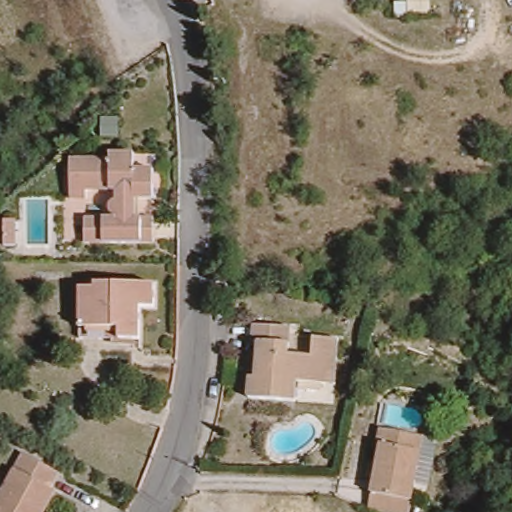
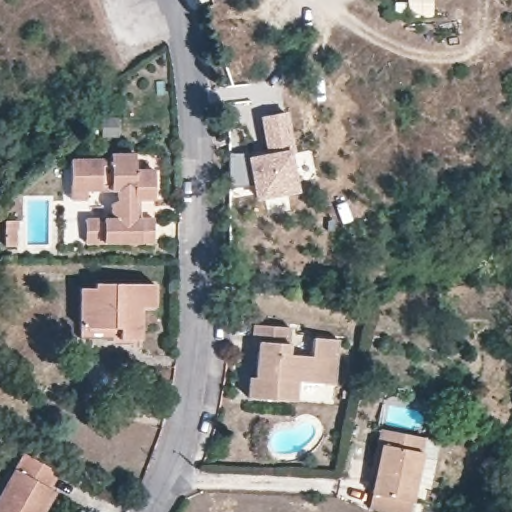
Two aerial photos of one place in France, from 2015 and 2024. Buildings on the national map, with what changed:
new [(268,153),(260,118),(284,113),(291,151),(299,190),(256,200),(252,182),(231,188),(229,154),(268,153)]
unchanged [(156,224),(156,246),(88,245),(88,224),(123,224),(123,221),(120,220),(117,218),(116,215),(116,212),(117,210),(118,208),(120,207),(123,206),(123,196),(94,195),(94,205),(74,204),(75,164),(115,165),(115,156),(137,158),(136,173),(156,173),(156,202),(144,202),(144,224),(156,224)]
unchanged [(18,246),(5,246),(4,220),(17,220),(18,246)]
unchanged [(85,323),(86,284),(101,285),(101,279),(161,283),(160,303),(146,303),(144,335),(123,334),(84,333),(85,323)]
unchanged [(329,384),(301,382),(300,400),(253,396),(254,374),(261,374),(263,340),(256,340),(258,323),(294,326),(293,354),(316,356),(317,336),(339,339),(344,339),(341,360),(341,384),(329,384)]
unchanged [(372,499),(374,481),(370,480),(376,448),(379,433),(425,441),(439,445),(429,493),(416,490),(413,506),(412,506),(410,512),(369,512),(372,499)]
unchanged [(0,508),(28,460),(63,480),(54,494),(61,498),(53,512),(0,512),(0,508)]

